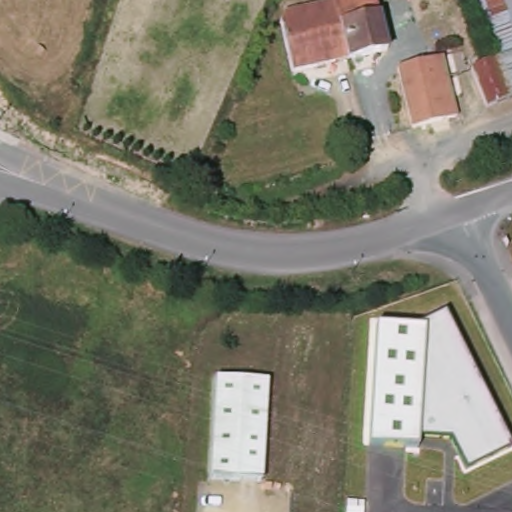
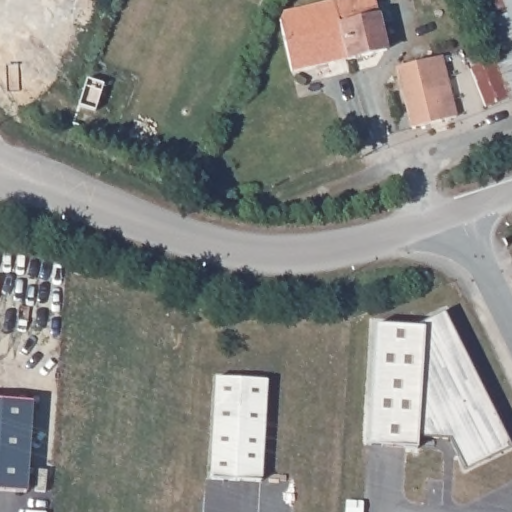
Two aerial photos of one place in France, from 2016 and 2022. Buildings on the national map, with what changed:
unchanged [(378,0),(391,43),(296,69),(284,15),(335,0),(378,0)]
unchanged [(512,0),(512,52),(495,58),(471,0),(512,0)]
unchanged [(495,58),(512,52),(512,101),(472,115),(462,87),(476,84),(473,66),(495,58)]
unchanged [(458,114),(413,125),(397,64),(422,58),(440,53),(451,91),(458,114)]
unchanged [(424,332),(424,324),(444,315),(512,449),(466,471),(451,441),(419,439),(418,448),(369,448),(373,328),(424,332)]
unchanged [(216,378),(267,381),(260,482),(210,479),(216,378)]
new [(26,492),(0,490),(0,400),(31,402),(26,492)]

